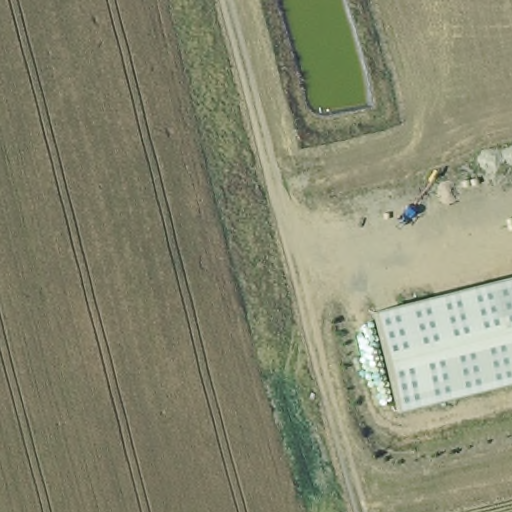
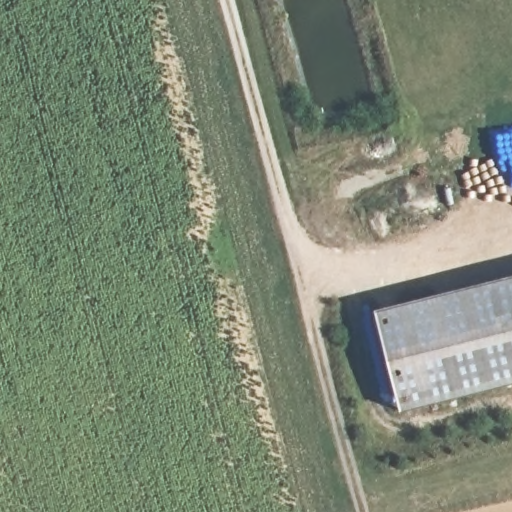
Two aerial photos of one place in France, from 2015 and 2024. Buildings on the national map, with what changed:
unchanged [(376,308),(512,274),(512,388),(402,416),(376,308)]

